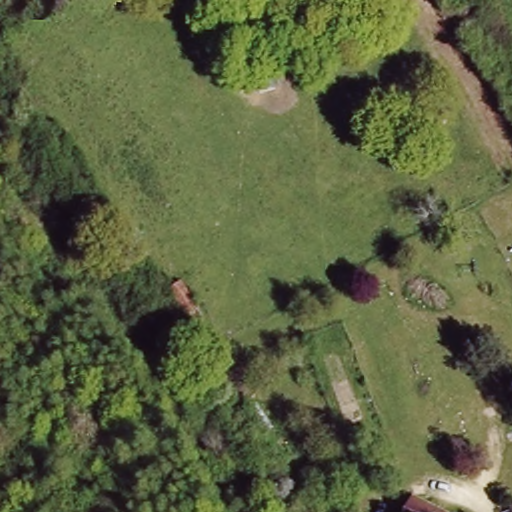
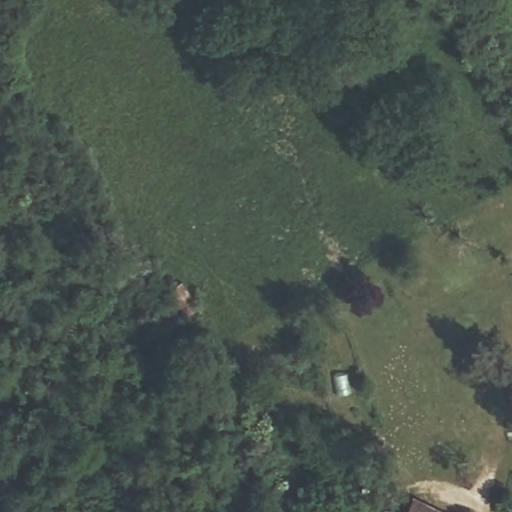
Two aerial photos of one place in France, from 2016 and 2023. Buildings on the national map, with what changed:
unchanged [(170,289),(186,279),(205,306),(189,318),(170,289)]
unchanged [(312,509),(358,491),(366,512),(313,512),(312,509)]
unchanged [(425,493),(450,512),(409,512),(425,493)]

